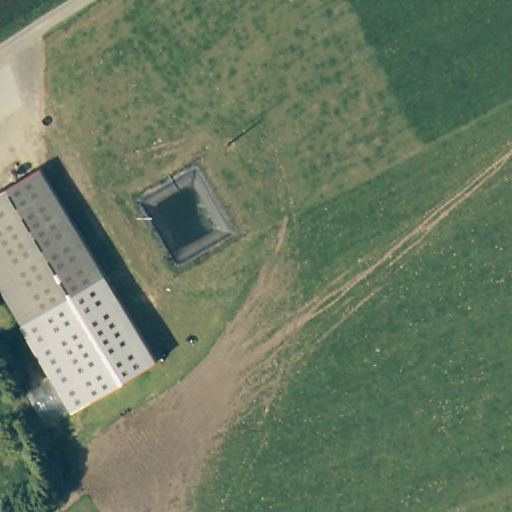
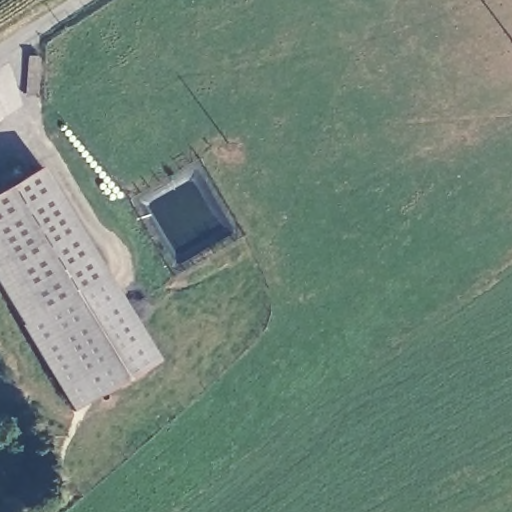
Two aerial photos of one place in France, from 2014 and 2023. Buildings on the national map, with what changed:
unchanged [(22,327),(0,290),(0,194),(44,168),(106,277),(22,327)]
unchanged [(157,361),(73,412),(22,327),(106,277),(157,361)]

